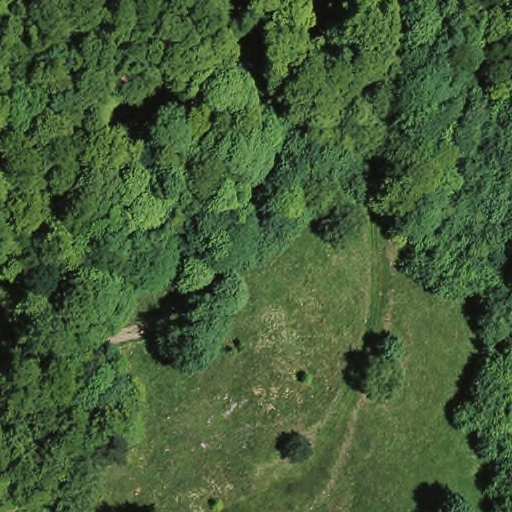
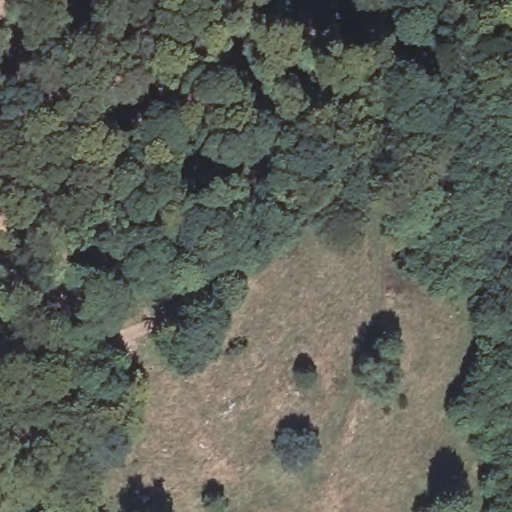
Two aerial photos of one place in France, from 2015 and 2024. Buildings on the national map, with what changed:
unchanged [(44,511),(66,511),(67,512),(44,512),(44,511)]

